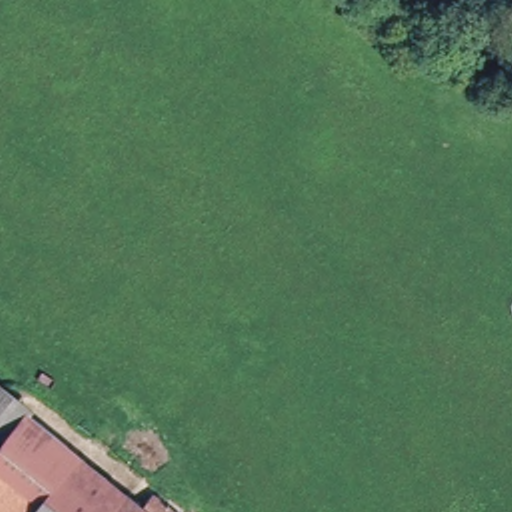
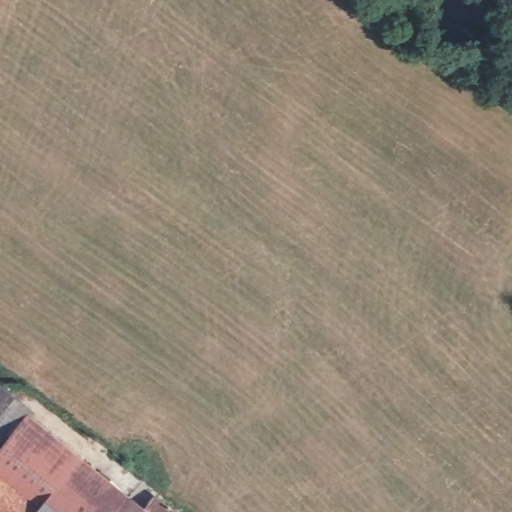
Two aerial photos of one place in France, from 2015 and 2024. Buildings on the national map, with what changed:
unchanged [(5,445),(0,441),(0,392),(30,415),(26,418),(80,461),(147,512),(0,512),(0,452),(5,445)]
unchanged [(159,501),(169,508),(173,512),(150,512),(159,501)]

